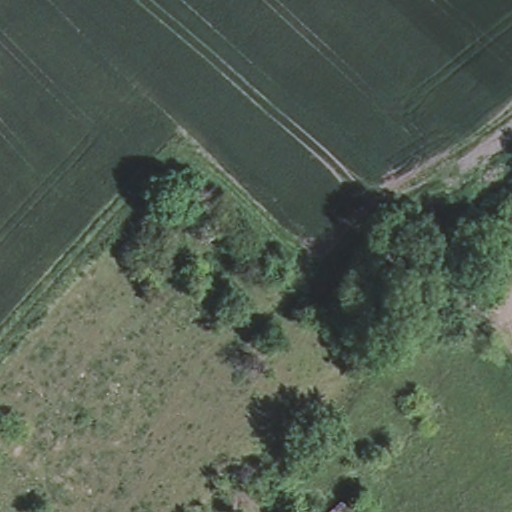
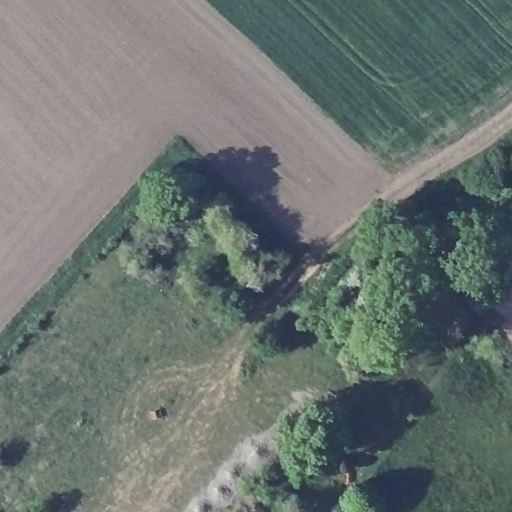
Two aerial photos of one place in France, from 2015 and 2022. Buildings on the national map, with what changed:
unchanged [(353,512),(327,512),(343,499),(353,512)]

